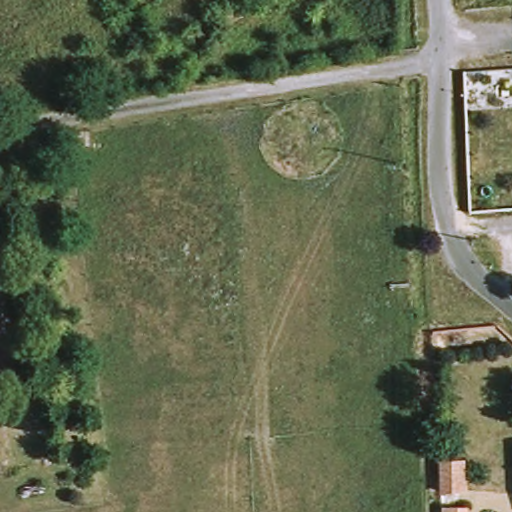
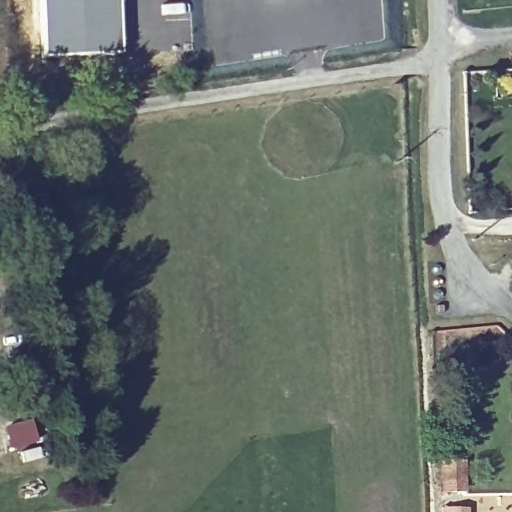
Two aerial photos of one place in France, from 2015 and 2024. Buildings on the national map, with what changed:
new [(45,0),(119,0),(121,53),(48,55),(45,0)]
unchanged [(466,512),(443,512),(466,510),(466,512)]

